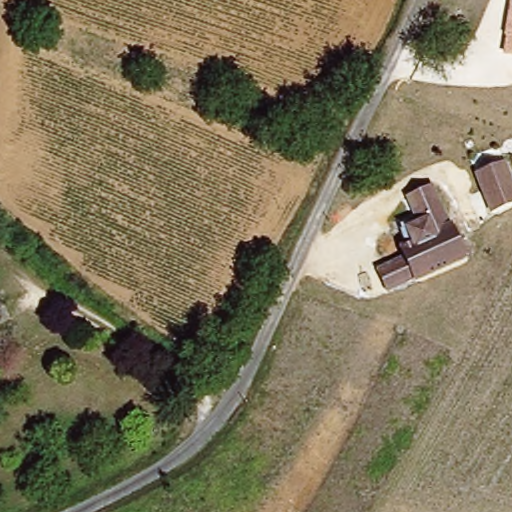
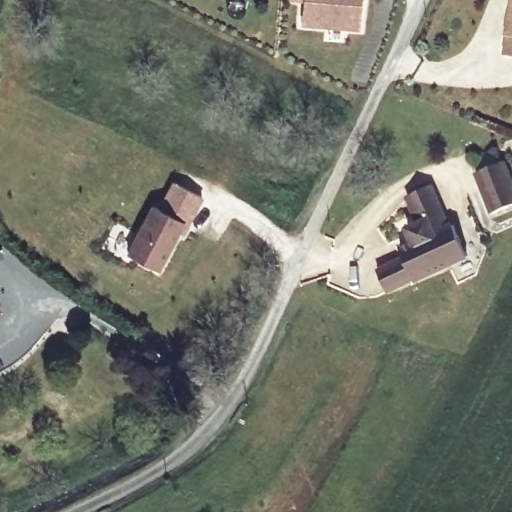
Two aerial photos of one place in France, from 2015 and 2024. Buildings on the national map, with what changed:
new [(311,24),(300,23),(301,0),(360,0),(360,3),(357,28),(347,27),(311,24)]
unchanged [(500,54),(508,0),(512,0),(512,56),(500,54)]
unchanged [(512,175),(512,204),(491,212),(477,173),(507,161),(512,175)]
new [(180,230),(160,269),(130,254),(155,205),(161,209),(176,182),(203,196),(189,224),(185,233),(180,230)]
unchanged [(466,259),(387,292),(377,267),(404,256),(399,245),(408,242),(400,221),(415,214),(407,196),(436,184),(466,259)]
unchanged [(228,357),(235,360),(232,370),(224,367),(228,357)]

